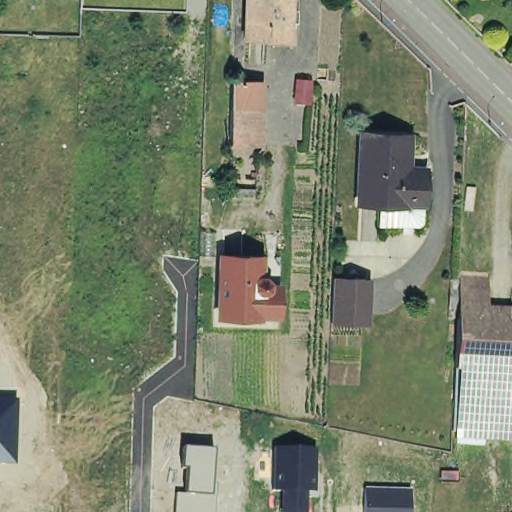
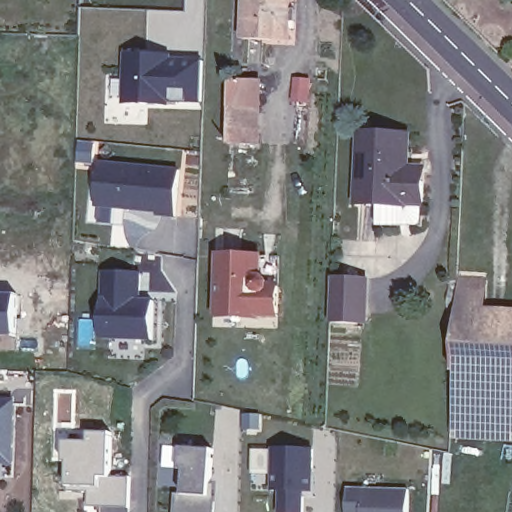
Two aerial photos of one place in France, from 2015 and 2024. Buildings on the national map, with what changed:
unchanged [(296,22),(290,22),(289,40),(244,39),(245,0),(290,0),(290,9),(296,9),(296,22)]
new [(205,107),(129,106),(130,58),(207,58),(205,107)]
unchanged [(309,79),(308,100),(295,100),(295,79),(309,79)]
unchanged [(253,87),(251,151),(224,149),(226,86),(253,87)]
unchanged [(357,202),(360,131),(398,133),(409,133),(408,166),(425,167),(422,204),(421,225),(394,225),(377,225),(378,203),(357,202)]
new [(100,163),(179,170),(175,216),(156,214),(157,211),(96,205),(100,163)]
unchanged [(262,255),(261,274),(265,276),(267,278),(271,284),(279,284),(278,314),(260,313),(258,315),(223,314),(219,314),(221,253),(225,253),(262,255)]
new [(103,271),(140,273),(139,300),(153,301),(151,339),(100,337),(103,271)]
unchanged [(458,277),(487,278),(486,320),(456,319),(458,277)]
unchanged [(369,283),(367,328),(336,327),(335,327),(338,282),(369,283)]
new [(24,298),(22,338),(0,337),(0,298),(24,298)]
unchanged [(486,320),(512,322),(512,372),(454,369),(456,319),(486,320)]
unchanged [(452,401),(454,369),(512,372),(512,405),(452,401)]
unchanged [(0,464),(0,399),(17,400),(16,464),(0,464)]
unchanged [(452,401),(512,405),(512,442),(450,438),(452,401)]
new [(89,489),(66,490),(65,439),(88,440),(89,431),(110,432),(110,476),(129,476),(128,507),(128,512),(99,512),(100,507),(90,507),(89,489)]
unchanged [(305,512),(281,512),(281,492),(274,492),(275,447),(315,450),(315,492),(306,492),(305,512)]
unchanged [(216,484),(214,512),(174,512),(176,492),(184,492),(186,469),(180,469),(181,448),(213,449),(211,484),(216,484)]
unchanged [(363,512),(363,488),(409,489),(409,512),(363,512)]

